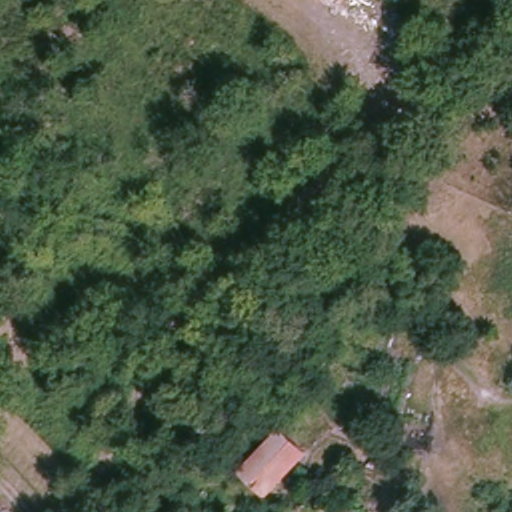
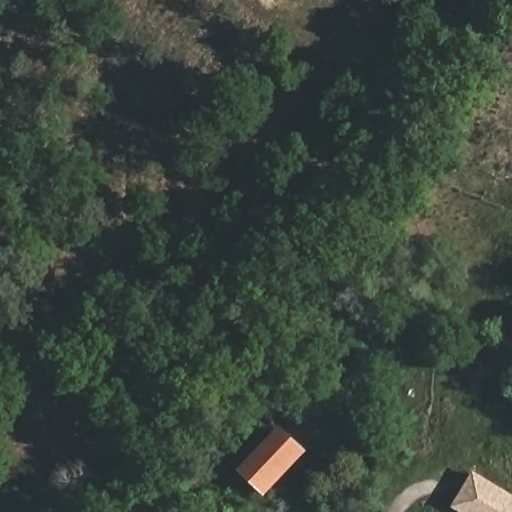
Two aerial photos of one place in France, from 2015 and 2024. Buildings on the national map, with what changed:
unchanged [(281,429),(302,449),(265,494),(242,474),(281,429)]
demolished [(405,442),(385,446),(382,436),(402,431),(405,442)]
new [(452,507),(473,472),(512,494),(512,512),(460,512),(452,507)]

